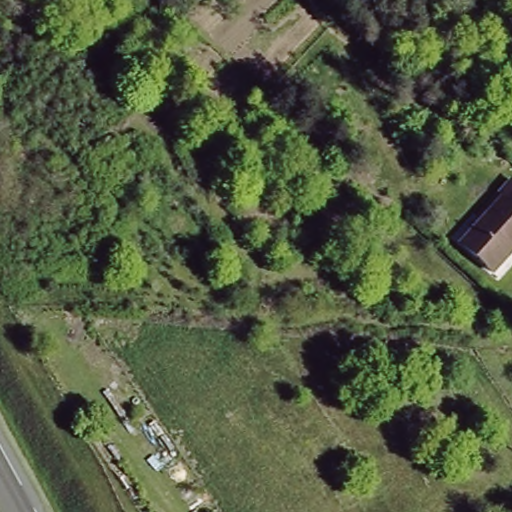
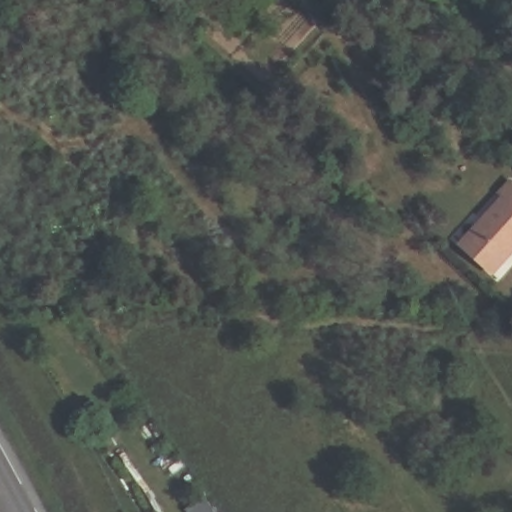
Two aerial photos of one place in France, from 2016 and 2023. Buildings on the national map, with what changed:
unchanged [(458,242),(499,199),(496,197),(512,181),(512,244),(488,270),(458,242)]

